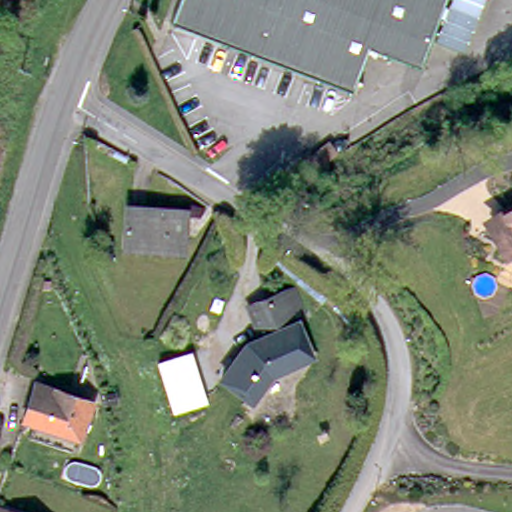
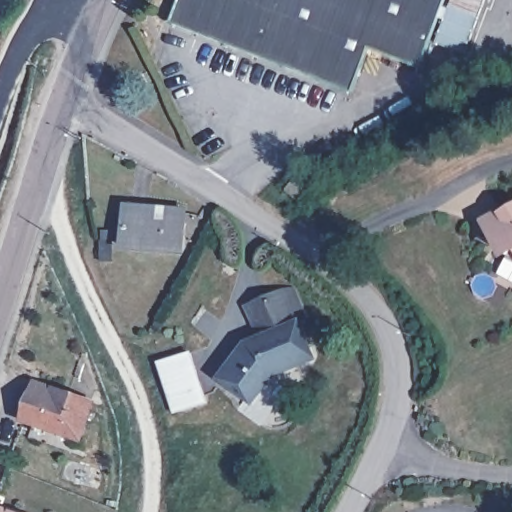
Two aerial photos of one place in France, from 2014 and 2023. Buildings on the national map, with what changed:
unchanged [(373,44),(369,42),(351,86),(325,76),(201,29),(172,18),(178,0),(442,0),(419,61),(373,44)]
unchanged [(478,9),(451,0),(481,0),(478,9)]
unchanged [(304,176),(299,169),(313,160),(321,153),(330,166),(327,168),(307,181),(304,176)]
unchanged [(512,203),(512,248),(509,250),(501,235),(490,230),(506,207),(512,203)]
unchanged [(179,244),(126,247),(124,225),(123,213),(176,210),(179,240),(179,244)]
unchanged [(254,399),(221,377),(247,341),(260,336),(247,305),(263,298),(276,292),(289,287),(301,315),(299,316),(294,319),(312,355),(271,374),(254,399)]
unchanged [(179,344),(197,392),(164,404),(146,356),(179,344)]
unchanged [(84,392),(73,431),(16,414),(24,384),(38,389),(40,380),(84,392)]
unchanged [(11,512),(13,508),(24,512),(11,512)]
unchanged [(0,512),(0,510),(4,512),(0,512)]

